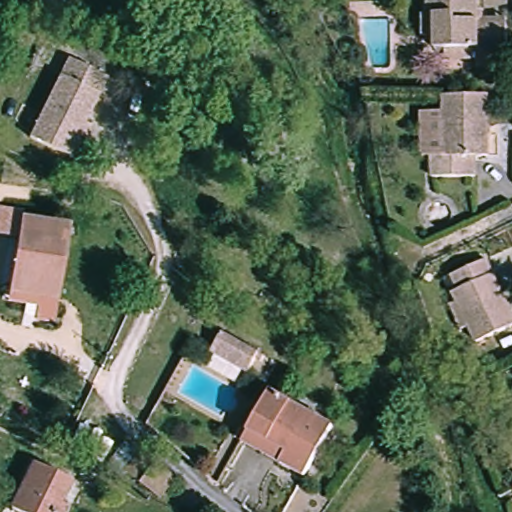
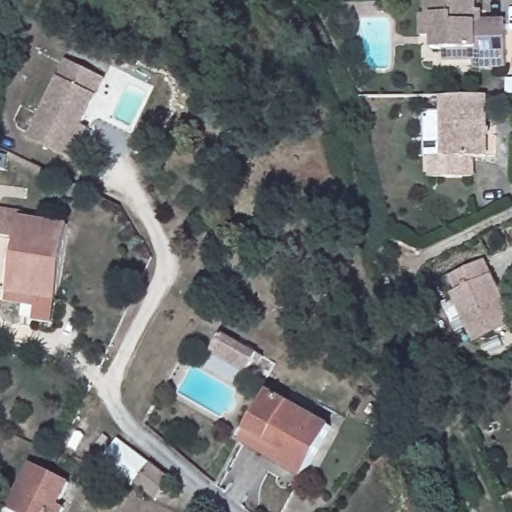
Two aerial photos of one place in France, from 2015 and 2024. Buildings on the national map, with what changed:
unchanged [(443,51),(432,51),(432,38),(420,38),(420,15),(425,15),(425,0),(480,0),(480,10),(482,10),(482,19),(505,19),(505,25),(505,70),(475,70),(475,62),(443,62),(443,51)]
unchanged [(76,161),(65,155),(32,137),(72,61),(109,80),(85,127),(92,130),(76,161)]
unchanged [(445,160),(434,160),(423,160),(423,98),(444,98),(445,98),(445,160)]
unchanged [(491,160),(477,160),(477,180),(434,181),(434,160),(445,160),(445,98),(475,98),(490,98),(491,160)]
unchanged [(10,303),(12,291),(23,217),(72,226),(63,300),(61,312),(10,303)]
unchanged [(457,296),(453,288),(457,286),(450,272),(484,256),(512,315),(512,322),(477,339),(468,319),(460,323),(449,300),(457,296)]
unchanged [(257,356),(245,376),(207,353),(217,334),(257,356)]
unchanged [(244,429),(268,387),(331,424),(301,477),(276,463),(237,440),(244,429)]
unchanged [(155,493),(130,478),(115,469),(126,450),(141,460),(165,475),(155,493)]
unchanged [(55,500),(63,504),(59,512),(20,512),(6,505),(27,460),(65,479),(55,500)]

